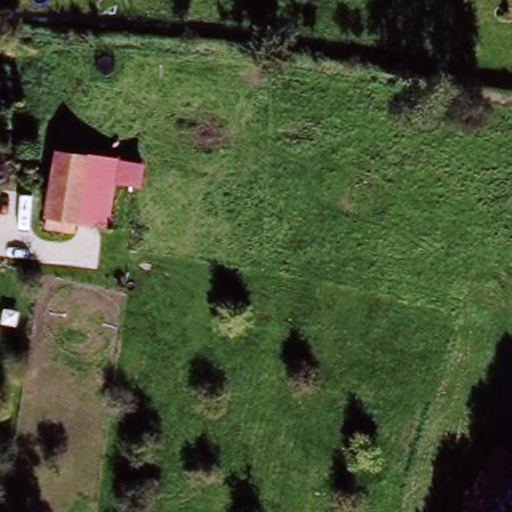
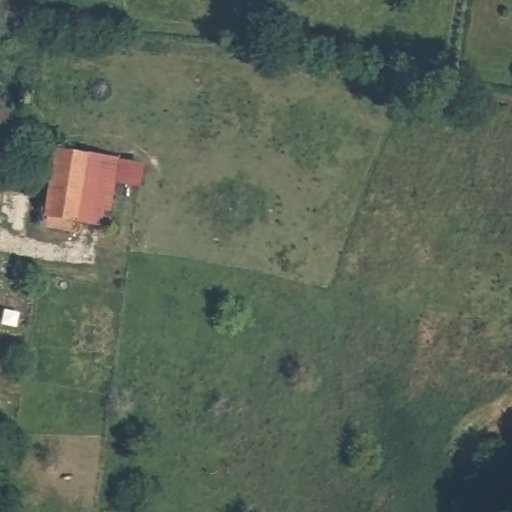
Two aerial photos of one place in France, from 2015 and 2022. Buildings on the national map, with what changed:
unchanged [(118,160),(143,164),(139,190),(115,186),(107,227),(77,224),(75,233),(43,228),(42,217),(53,149),(118,160)]
unchanged [(472,512),(512,447),(512,512),(472,512)]

